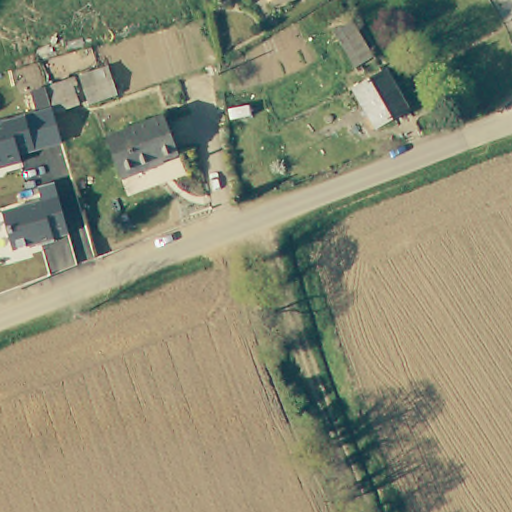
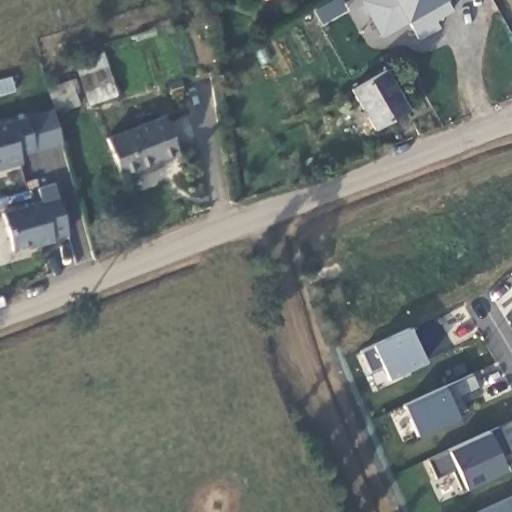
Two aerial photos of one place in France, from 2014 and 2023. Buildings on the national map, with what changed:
new [(436,18),(440,28),(418,38),(407,18),(381,35),(362,0),(447,0),(452,9),(436,18)]
unchanged [(75,74),(103,65),(113,93),(85,103),(75,74)]
unchanged [(389,74),(411,111),(380,130),(357,93),(389,74)]
unchanged [(19,155),(21,163),(0,168),(0,122),(36,111),(31,89),(43,85),(66,78),(74,101),(51,110),(61,144),(19,155)]
unchanged [(157,163),(159,169),(124,181),(108,135),(165,116),(179,156),(157,163)]
unchanged [(54,183),(68,234),(52,238),(53,241),(12,251),(2,212),(41,200),(37,187),(54,183)]
new [(372,344),(412,329),(425,363),(388,379),(381,364),(369,370),(360,350),(372,344)]
new [(444,387),(471,374),(476,388),(460,396),(467,410),(456,414),(458,421),(418,439),(404,406),(444,387)]
new [(448,448),(488,431),(497,426),(508,448),(499,451),(507,472),(466,490),(456,465),(434,476),(428,459),(448,448)]
new [(512,496),(512,512),(476,512),(512,496)]

